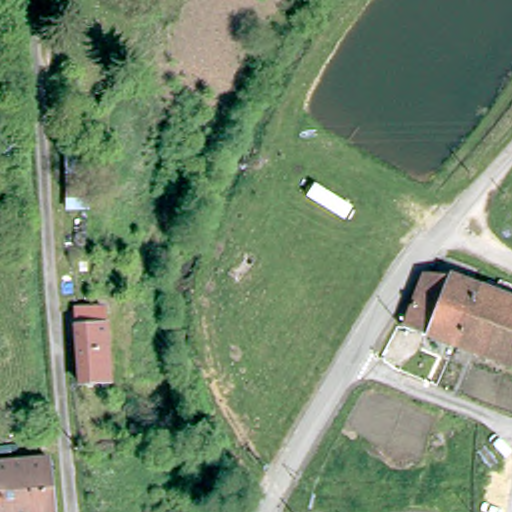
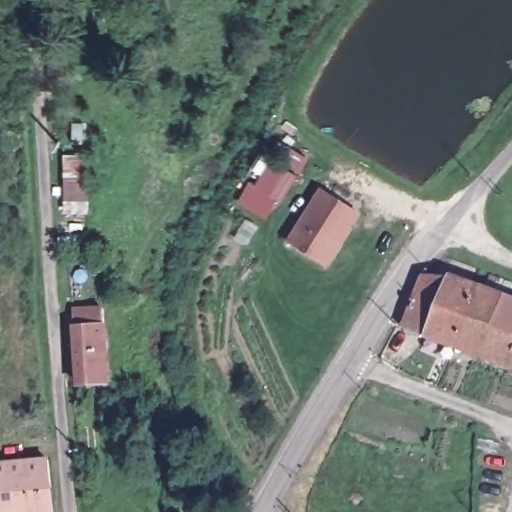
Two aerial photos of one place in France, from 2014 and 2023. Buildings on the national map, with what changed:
new [(282,202),(280,200),(267,220),(238,202),(251,181),(255,185),(270,159),(283,166),(294,149),(310,157),(299,175),(282,202)]
unchanged [(62,154),(88,153),(92,207),(65,206),(62,154)]
new [(362,214),(327,267),(286,241),(321,187),(362,214)]
unchanged [(401,324),(420,271),(453,270),(474,278),(502,288),(512,291),(512,360),(452,341),(401,324)]
unchanged [(81,383),(77,319),(75,303),(111,302),(112,317),(109,318),(110,323),(112,381),(81,383)]
unchanged [(47,457),(51,457),(57,512),(0,512),(0,460),(23,459),(47,457)]

